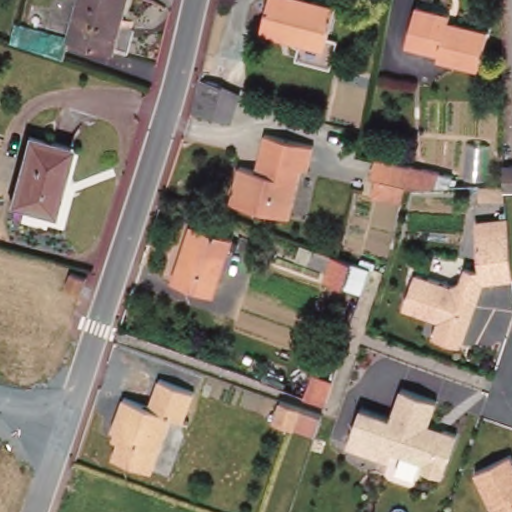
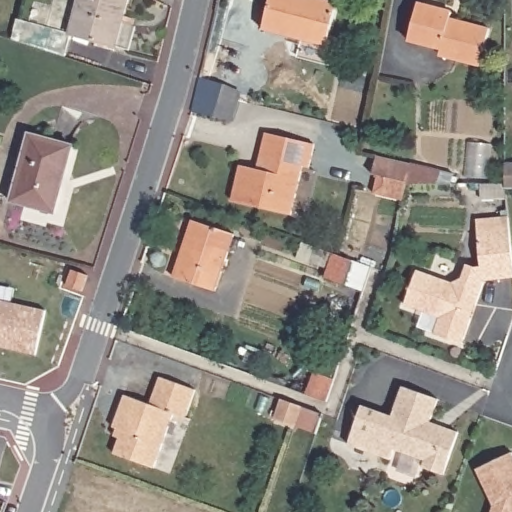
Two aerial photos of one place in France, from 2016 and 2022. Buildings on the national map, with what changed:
unchanged [(132,0),(124,31),(122,31),(88,19),(74,14),(77,0),(132,0)]
unchanged [(262,31),(268,0),(325,0),(338,3),(328,47),(262,31)]
unchanged [(479,67),(438,56),(439,50),(409,41),(416,3),(450,11),(448,20),(489,31),(479,67)]
unchanged [(51,55),(18,43),(26,19),(29,20),(58,29),(59,29),(61,30),(70,33),(84,38),(76,64),(51,55)]
unchanged [(234,121),(192,110),(201,76),(246,90),(234,121)]
unchanged [(245,164),(260,167),(269,128),(317,139),(312,163),(306,162),(295,209),(290,207),(286,206),(244,192),(237,190),(245,164)]
unchanged [(73,143),(54,211),(10,196),(28,131),(73,143)]
new [(500,142),(512,143),(512,169),(499,169),(500,142)]
unchanged [(374,168),(370,166),(376,149),(410,159),(440,167),(437,185),(412,181),(408,193),(405,200),(376,189),(368,186),(374,168)]
unchanged [(283,223),(243,216),(245,206),(250,208),(288,221),(283,223)]
unchanged [(463,282),(470,267),(481,271),(477,221),(506,219),(512,265),(512,283),(487,283),(464,347),(435,339),(440,322),(403,310),(415,273),(463,282)]
unchanged [(232,235),(212,290),(175,277),(193,222),(232,235)]
unchanged [(336,283),(341,271),(321,264),(326,250),(347,257),(352,259),(365,264),(355,288),(336,283)]
unchanged [(66,290),(73,270),(91,277),(84,297),(66,290)]
new [(36,357),(3,349),(0,349),(0,303),(46,313),(36,357)]
new [(291,367),(312,375),(305,396),(284,389),(291,367)]
unchanged [(176,409),(158,460),(120,448),(126,428),(116,424),(127,393),(155,402),(161,380),(165,371),(198,383),(195,393),(188,413),(176,409)]
unchanged [(392,417),(402,388),(439,399),(433,424),(460,433),(444,478),(422,471),(422,462),(394,456),(391,464),(348,449),(362,408),(392,417)]
unchanged [(495,502),(476,467),(512,450),(512,512),(492,512),(495,502)]

